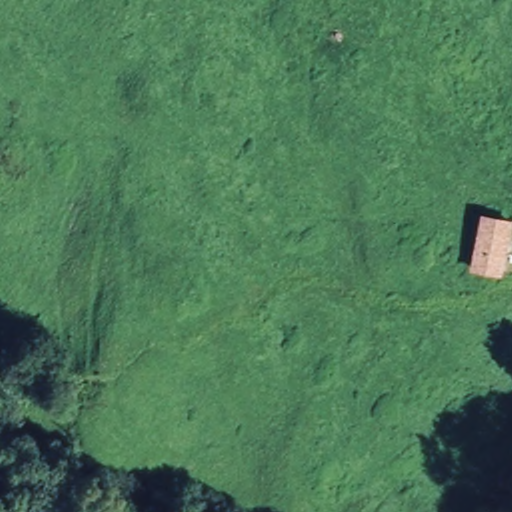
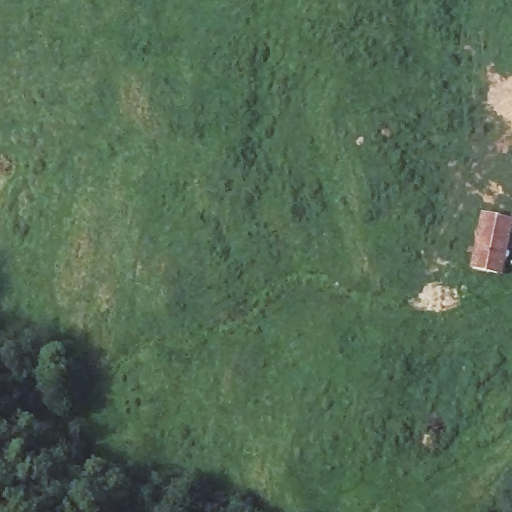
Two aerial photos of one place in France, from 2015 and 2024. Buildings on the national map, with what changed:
unchanged [(512,230),(512,252),(509,273),(478,268),(484,226),(512,230)]

